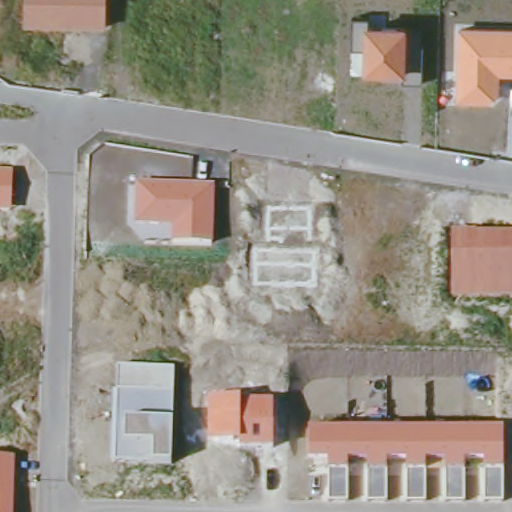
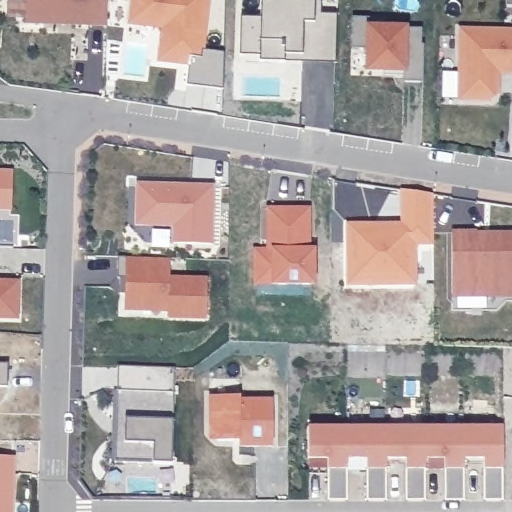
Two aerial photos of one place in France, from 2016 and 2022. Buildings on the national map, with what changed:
unchanged [(26,0),(107,0),(106,27),(26,25),(26,0)]
new [(158,62),(163,28),(129,25),(132,0),(208,0),(203,50),(225,51),(225,90),(186,87),(189,64),(158,62)]
new [(234,20),(254,21),(255,2),(262,3),(315,4),(315,17),(331,17),(329,64),(295,63),(295,56),(278,55),(278,66),(252,65),(253,59),(233,59),(233,45),(234,20)]
unchanged [(403,80),(403,72),(364,71),(366,45),(352,48),(352,17),(368,17),(368,25),(407,26),(407,42),(423,45),(421,82),(403,80)]
unchanged [(512,29),(512,75),(500,75),(500,92),(491,102),(456,101),(458,27),(512,29)]
unchanged [(13,169),(12,212),(0,211),(0,168),(13,169)]
unchanged [(170,245),(171,227),(134,226),(135,183),(213,184),(213,246),(170,245)]
new [(347,287),(347,222),(401,224),(400,190),(432,194),(434,245),(417,246),(416,287),(347,287)]
unchanged [(252,243),(265,243),(266,205),(311,205),(310,244),(319,243),(319,286),(252,284),(252,243)]
unchanged [(512,232),(512,297),(450,297),(451,231),(512,232)]
new [(165,264),(164,284),(202,285),(201,323),(162,322),(163,314),(118,312),(118,300),(113,300),(113,284),(111,284),(111,263),(165,264)]
new [(11,288),(10,324),(0,324),(0,287),(11,288)]
unchanged [(119,366),(173,368),(172,421),(171,464),(154,463),(115,462),(119,366)]
new [(2,369),(1,393),(0,393),(0,369),(2,369)]
unchanged [(208,395),(273,397),(273,447),(239,448),(239,440),(207,441),(208,395)]
unchanged [(328,468),(328,458),(309,457),(309,425),(503,426),(503,468),(502,499),(484,499),(484,468),(484,459),(463,459),(462,468),(463,500),(445,499),(445,467),(445,458),(423,458),(423,467),(423,499),(406,498),(406,467),(405,458),(385,458),(385,467),(384,500),(367,500),(367,467),(367,458),(346,458),(345,466),(345,499),(328,500),(328,468)]
unchanged [(14,455),(13,512),(0,512),(0,455),(14,455)]

